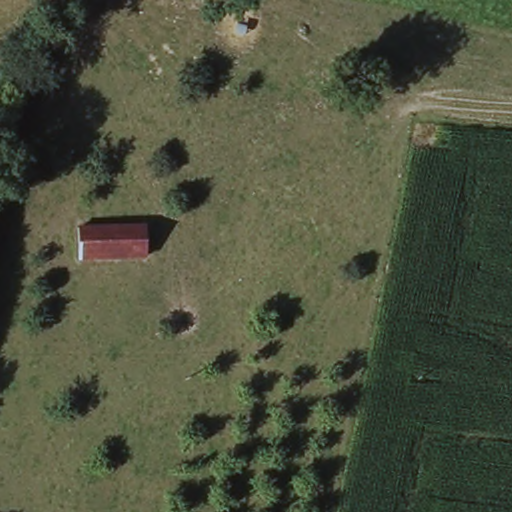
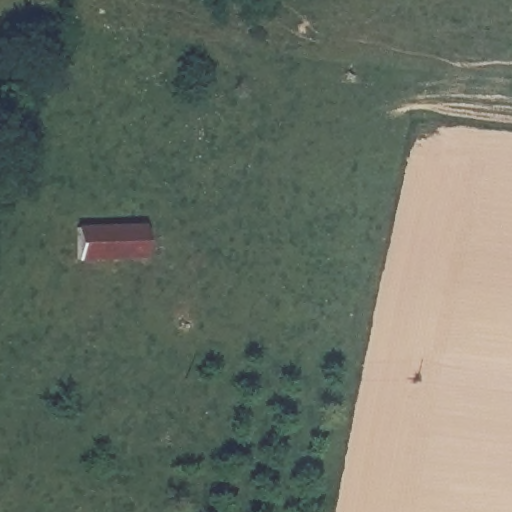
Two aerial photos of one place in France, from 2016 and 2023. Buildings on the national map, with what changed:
unchanged [(145,230),(146,262),(79,265),(78,232),(145,230)]

